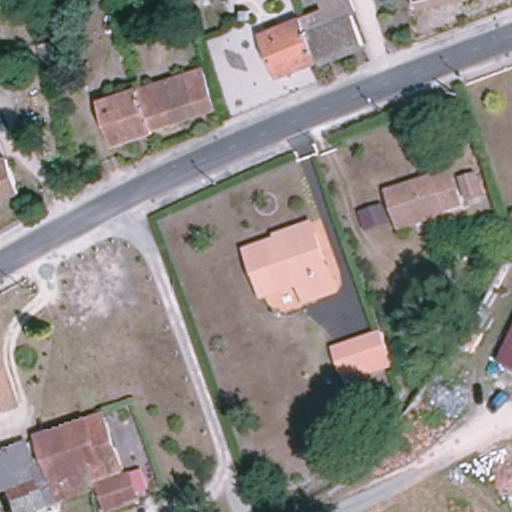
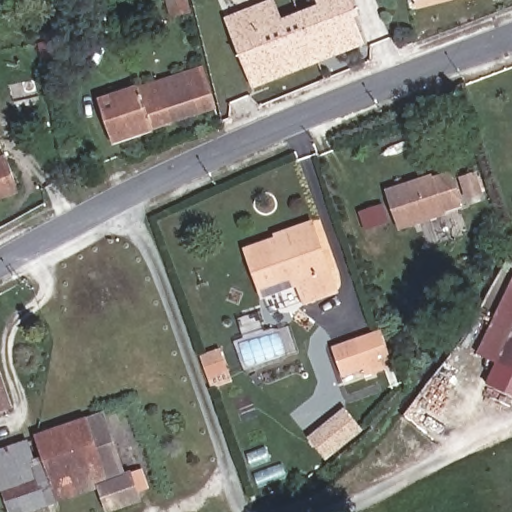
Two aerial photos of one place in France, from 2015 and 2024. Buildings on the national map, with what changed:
new [(277,82),(254,90),(224,19),(273,0),(274,0),(284,24),(259,32),(277,82)]
unchanged [(351,12),(364,50),(277,82),(259,32),(323,9),(319,0),(351,0),(355,10),(351,12)]
unchanged [(64,25),(68,48),(43,54),(39,31),(64,25)]
unchanged [(215,114),(104,140),(95,98),(204,71),(215,114)]
unchanged [(441,106),(450,102),(455,111),(446,115),(441,106)]
unchanged [(17,194),(0,199),(0,163),(11,161),(17,194)]
unchanged [(446,212),(448,217),(399,232),(385,189),(430,174),(433,178),(453,171),(463,205),(446,212)]
unchanged [(306,305),(301,286),(268,298),(252,254),(279,244),(276,238),(314,226),(318,237),(338,294),(306,305)]
unchanged [(400,371),(347,388),(333,347),(385,329),(400,371)]
unchanged [(502,362),(512,340),(512,368),(502,362)]
unchanged [(0,411),(0,371),(12,406),(0,411)]
new [(326,463),(307,437),(345,407),(364,430),(326,463)]
unchanged [(156,512),(123,512),(118,499),(85,511),(60,446),(116,428),(140,492),(149,489),(156,512)]
unchanged [(82,512),(44,512),(24,455),(44,448),(51,468),(60,465),(53,449),(60,446),(85,511),(82,512)]
unchanged [(0,480),(0,469),(13,464),(30,512),(11,512),(0,480)]

